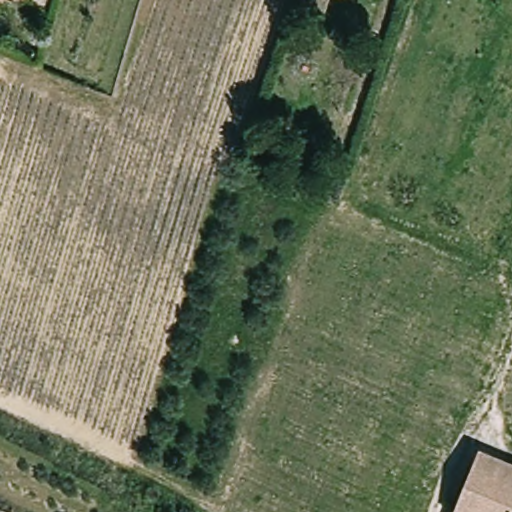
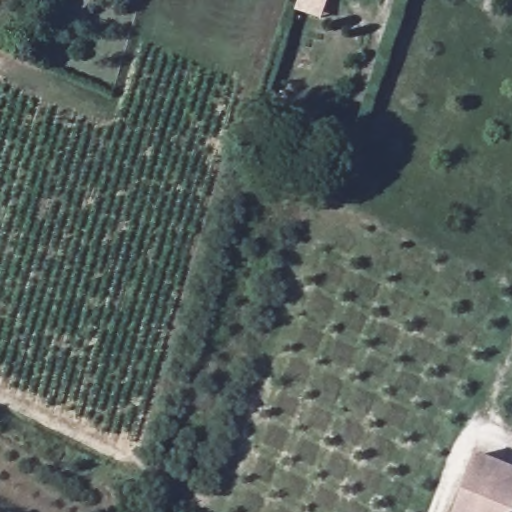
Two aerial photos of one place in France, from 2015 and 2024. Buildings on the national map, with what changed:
unchanged [(477,458),(512,471),(512,512),(454,512),(477,458)]

